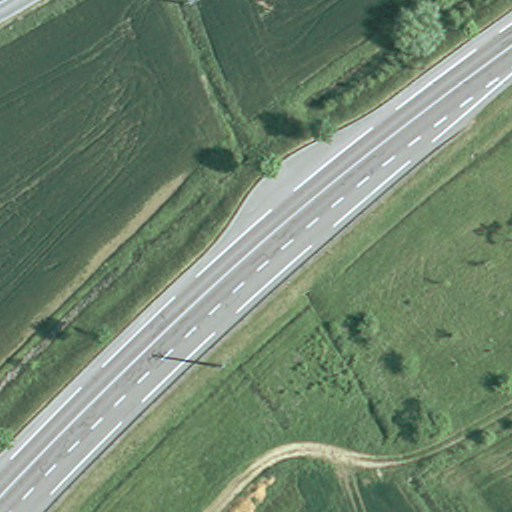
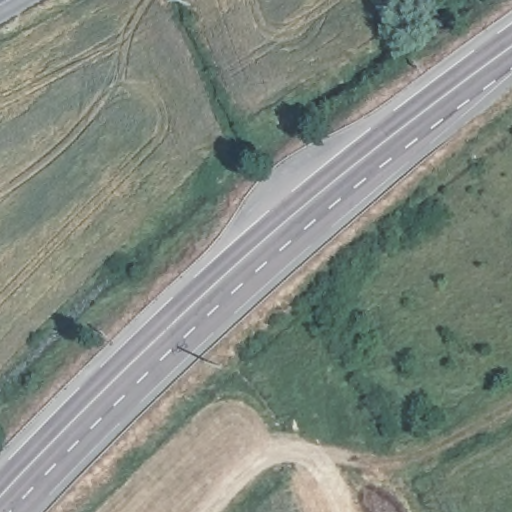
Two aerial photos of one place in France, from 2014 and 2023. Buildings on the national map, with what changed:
unchanged [(245,54),(237,37),(255,28),(262,44),(245,54)]

